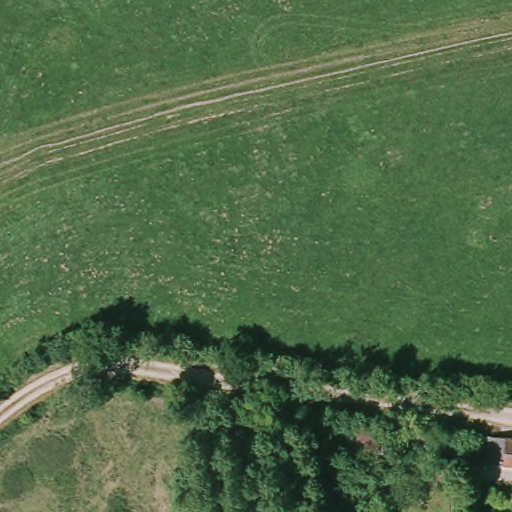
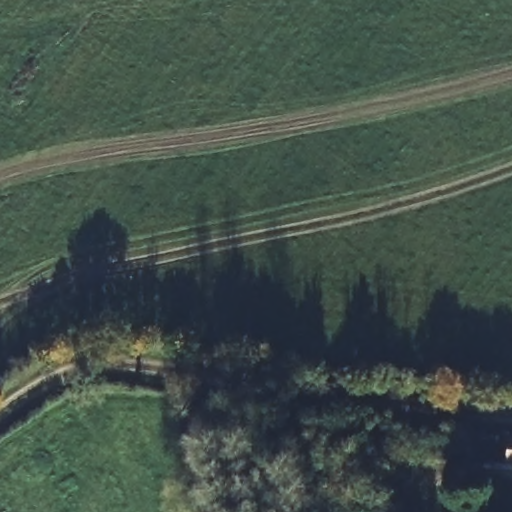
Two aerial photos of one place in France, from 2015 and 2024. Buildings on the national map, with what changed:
unchanged [(405,431),(403,456),(359,455),(360,428),(405,431)]
unchanged [(490,447),(512,448),(512,473),(491,472),(490,447)]

